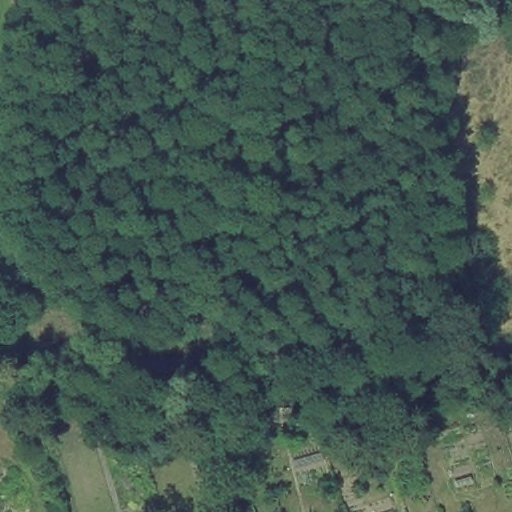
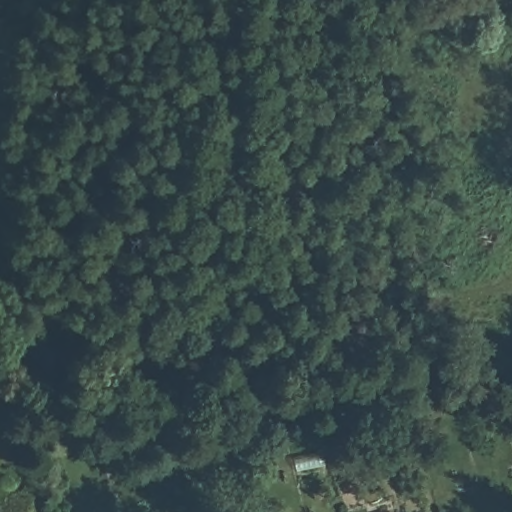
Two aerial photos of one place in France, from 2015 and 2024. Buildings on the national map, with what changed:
[]

